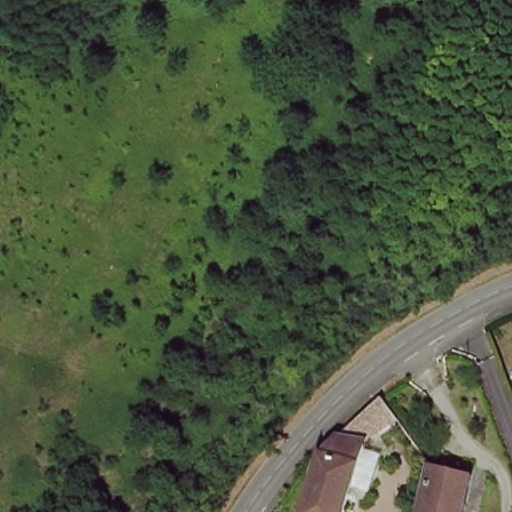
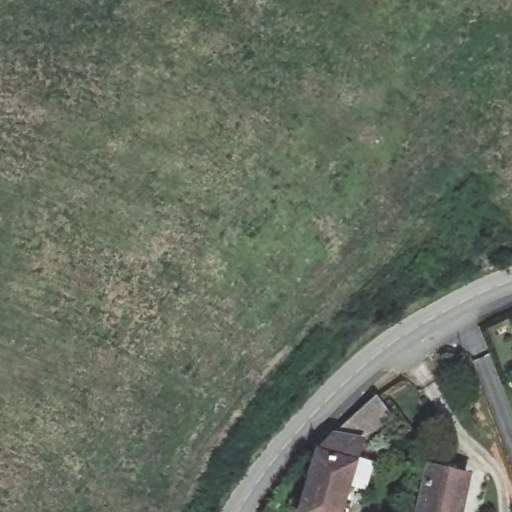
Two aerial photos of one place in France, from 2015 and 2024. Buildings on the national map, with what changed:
unchanged [(323,450),(349,420),(369,429),(348,483),(339,512),(300,512),(314,474),(323,450)]
unchanged [(435,468),(473,478),(464,512),(423,512),(435,468)]

